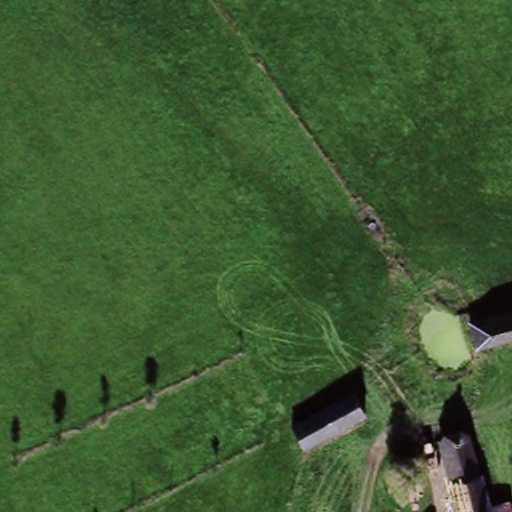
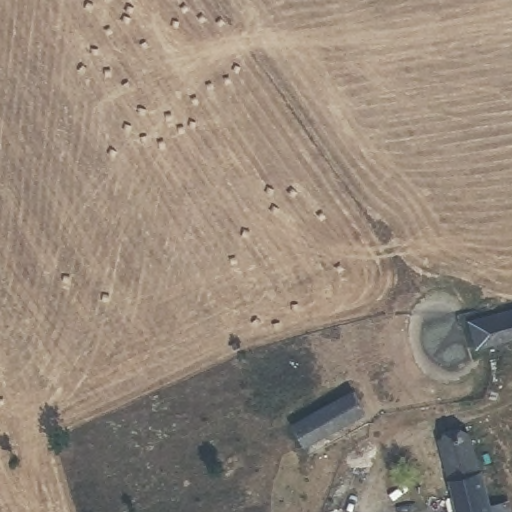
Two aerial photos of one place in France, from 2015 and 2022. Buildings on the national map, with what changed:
unchanged [(465,322),(512,309),(512,343),(476,353),(465,322)]
unchanged [(330,410),(351,401),(360,419),(301,446),(292,426),(330,410)]
unchanged [(436,438),(466,432),(483,512),(451,512),(436,438)]

